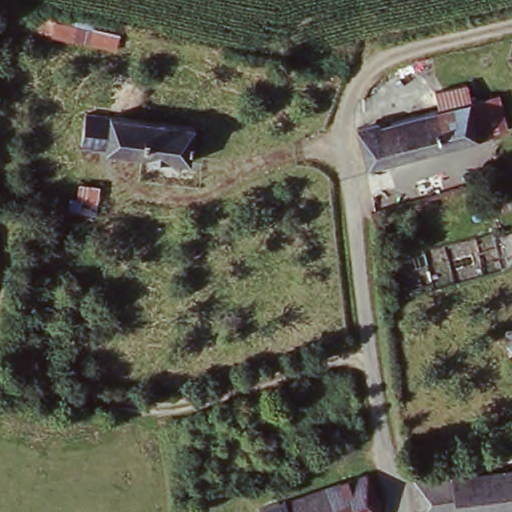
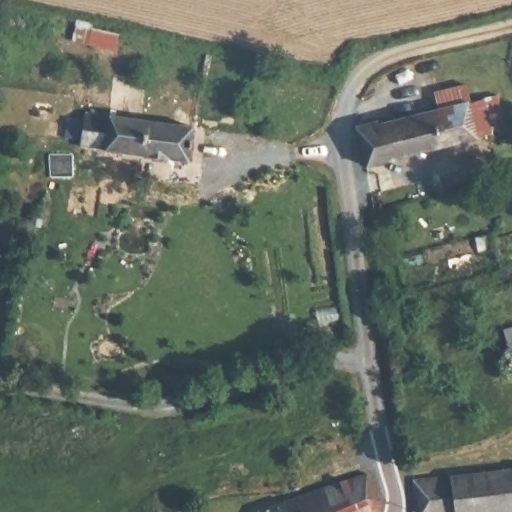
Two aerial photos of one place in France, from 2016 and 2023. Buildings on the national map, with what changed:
unchanged [(383,128),(446,114),(440,94),(472,88),(476,106),(502,101),(510,135),(483,140),(368,166),(362,128),(382,122),(383,128)]
unchanged [(187,163),(102,154),(102,149),(84,148),(87,116),(142,122),(192,129),(187,163)]
unchanged [(99,184),(96,212),(80,209),(83,183),(99,184)]
unchanged [(512,342),(512,351),(510,342),(512,342)]
unchanged [(512,467),(512,511),(509,512),(417,512),(413,482),(512,467)]
unchanged [(321,484),(337,479),(366,471),(372,483),(378,495),(377,512),(330,512),(321,484)]
unchanged [(286,510),(295,493),(321,484),(330,512),(286,512),(286,510)]
unchanged [(252,507),(281,497),(286,510),(286,512),(254,512),(252,507)]

